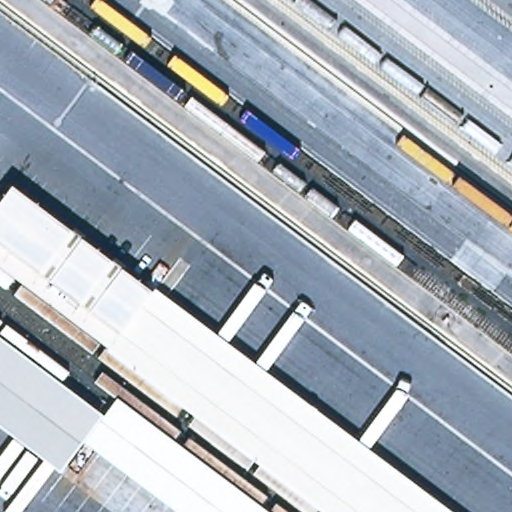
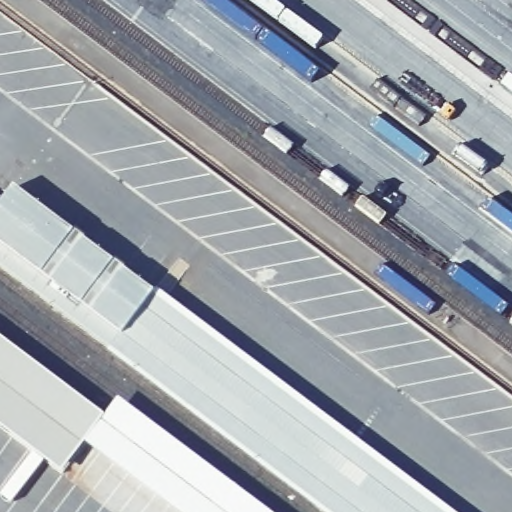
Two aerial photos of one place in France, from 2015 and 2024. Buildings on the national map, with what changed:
unchanged [(156,295),(128,341),(117,333),(0,248),(0,204),(13,187),(156,295)]
unchanged [(0,272),(0,248),(117,333),(128,341),(156,295),(159,289),(453,512),(323,512),(0,272)]
unchanged [(115,403),(122,409),(260,512),(171,512),(129,480),(84,446),(61,477),(0,430),(0,338),(103,416),(115,403)]

